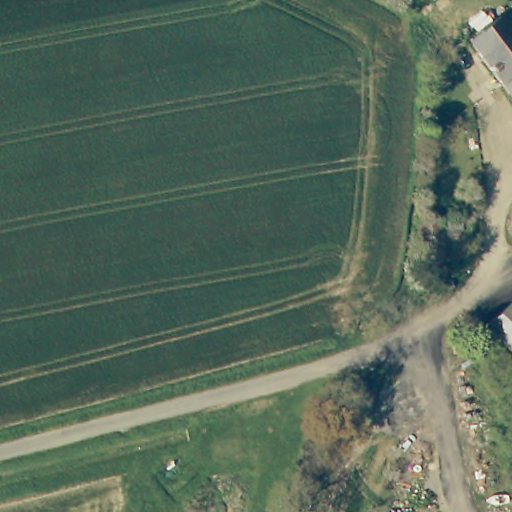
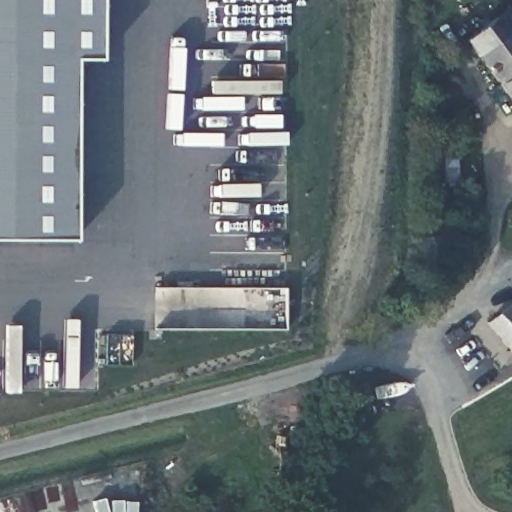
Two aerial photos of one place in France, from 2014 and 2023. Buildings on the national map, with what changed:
new [(99,59),(74,59),(74,238),(0,239),(0,0),(99,0),(99,59)]
unchanged [(503,6),(506,5),(512,12),(512,24),(507,30),(512,36),(512,72),(508,75),(499,82),(465,37),(503,6)]
unchanged [(512,72),(512,98),(499,82),(508,75),(512,72)]
unchanged [(435,232),(475,229),(478,251),(454,254),(453,257),(436,258),(435,232)]
unchanged [(512,309),(512,339),(495,321),(512,309)]

